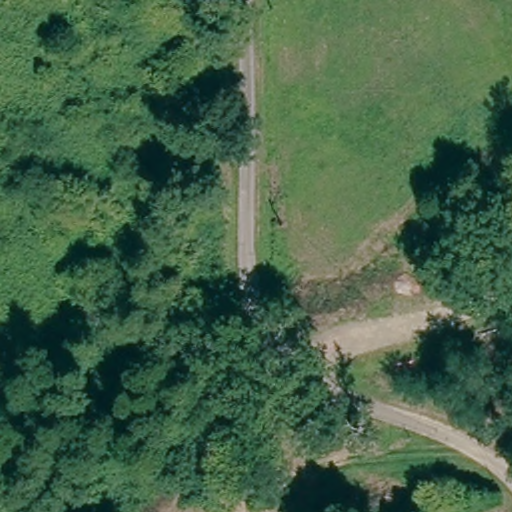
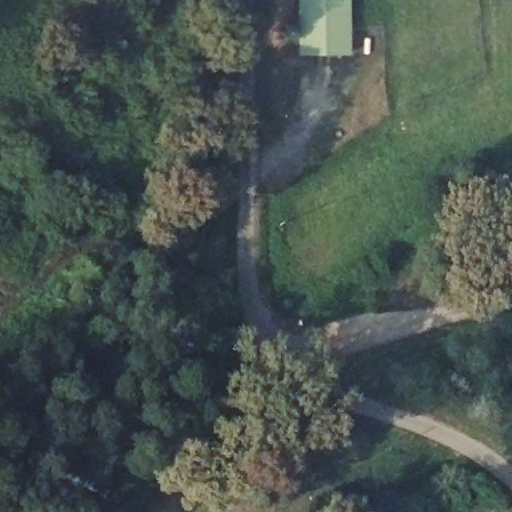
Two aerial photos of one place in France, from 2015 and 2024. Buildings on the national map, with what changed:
new [(299,54),(298,37),(287,38),(286,25),(298,24),(297,0),(351,0),(352,53),(299,54)]

